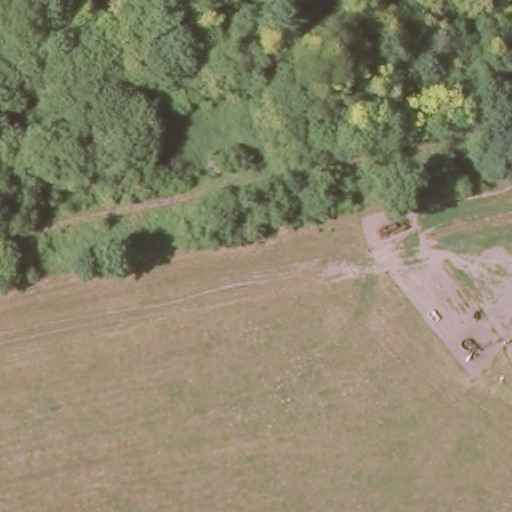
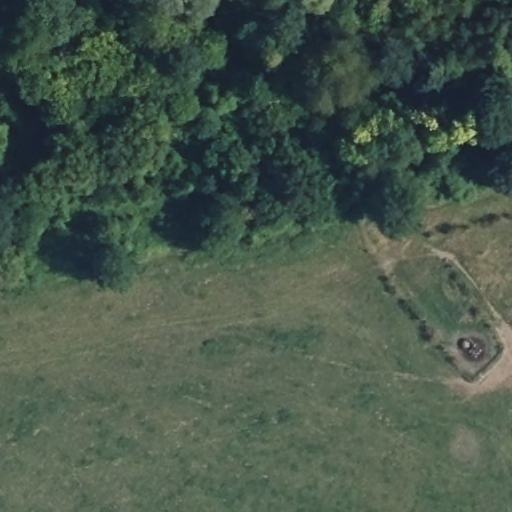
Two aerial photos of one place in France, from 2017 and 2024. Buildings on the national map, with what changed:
unchanged [(52,0),(54,0),(52,1),(52,0)]

